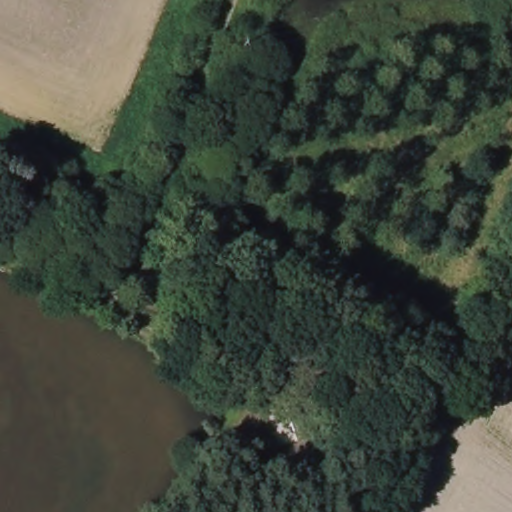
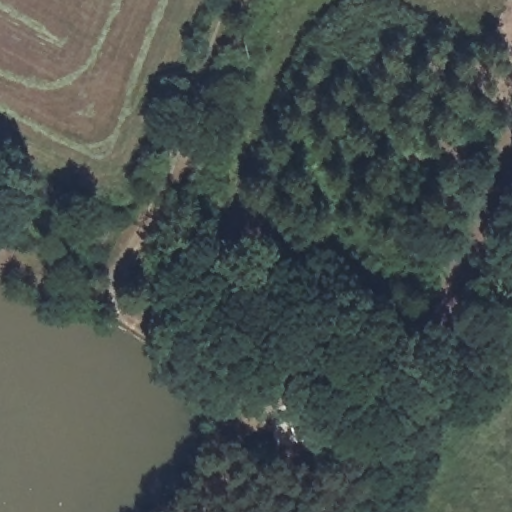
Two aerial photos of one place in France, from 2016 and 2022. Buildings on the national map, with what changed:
unchanged [(283,413),(305,405),(315,434),(299,443),(283,413)]

